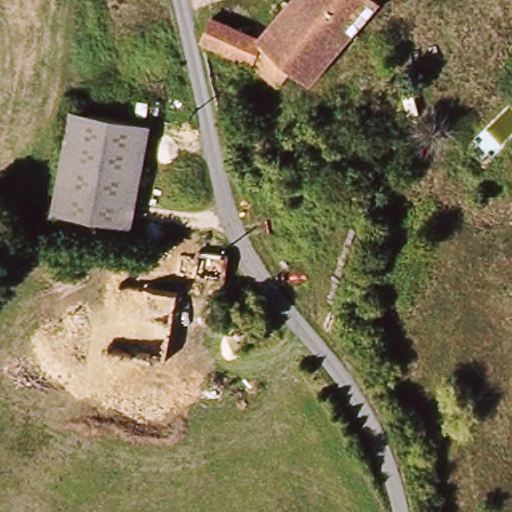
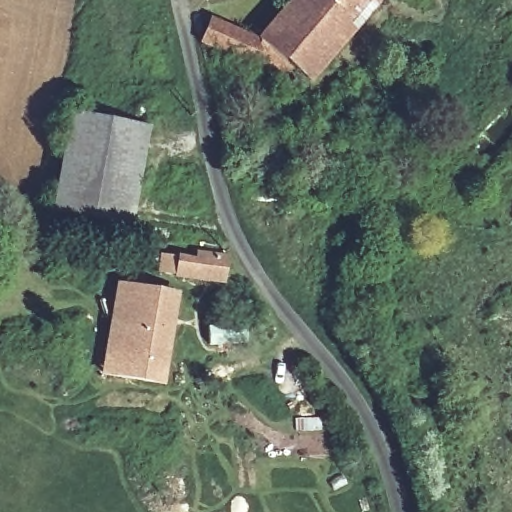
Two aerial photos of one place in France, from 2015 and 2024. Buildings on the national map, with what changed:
unchanged [(376,6),(347,40),(307,89),(286,74),(276,88),(250,67),(199,46),(210,18),(256,39),(291,0),(370,0),(376,6)]
unchanged [(137,225),(55,209),(72,113),(154,126),(137,225)]
new [(229,255),(226,284),(174,277),(175,274),(158,272),(160,254),(177,257),(177,254),(195,257),(196,251),(229,255)]
demolished [(225,256),(231,279),(182,274),(181,270),(184,256),(198,257),(201,252),(225,256)]
new [(116,283),(180,292),(164,385),(100,376),(116,283)]
demolished [(166,361),(113,355),(121,286),(175,295),(166,361)]

